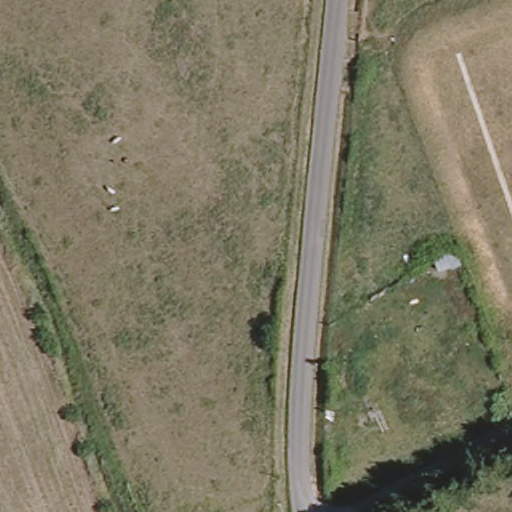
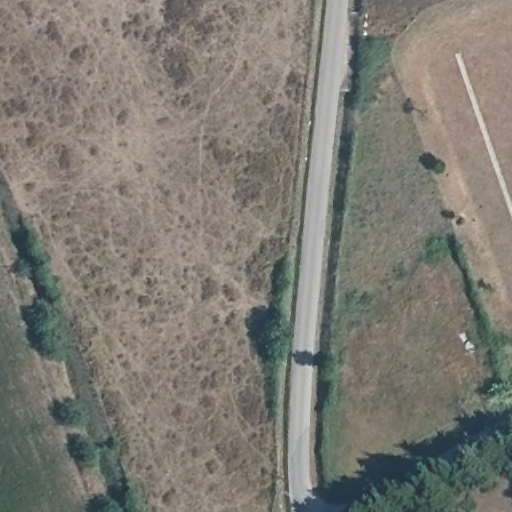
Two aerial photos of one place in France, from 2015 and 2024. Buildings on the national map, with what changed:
unchanged [(469,270),(454,277),(444,260),(452,247),(469,270)]

